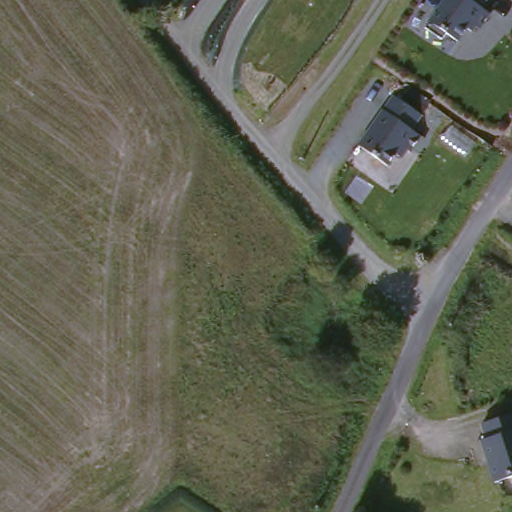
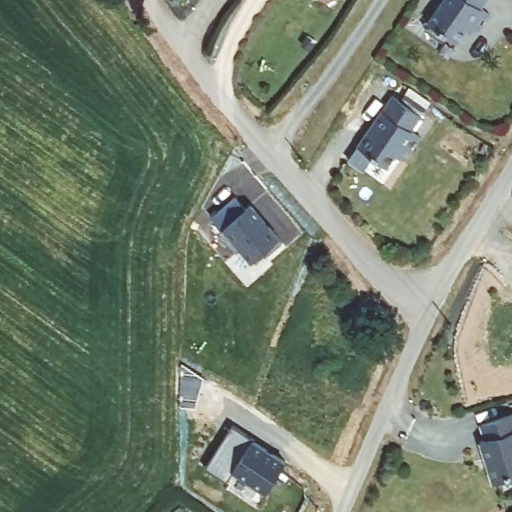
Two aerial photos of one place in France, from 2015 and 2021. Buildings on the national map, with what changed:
unchanged [(482,5),(491,11),(483,28),(472,25),(468,30),(462,29),(453,41),(425,21),(441,0),(486,0),(482,5)]
unchanged [(423,115),(412,130),(418,134),(402,157),(393,155),(387,166),(357,142),(392,95),(423,115)]
new [(246,209),(251,205),(281,239),(249,264),(221,231),(209,217),(234,196),(246,209)]
unchanged [(395,314),(405,323),(390,340),(366,319),(381,301),(395,314)]
unchanged [(491,483),(479,441),(484,438),(479,425),(512,415),(512,477),(491,483)]
new [(254,440),(287,461),(266,493),(234,472),(227,481),(207,468),(233,425),(254,440)]

